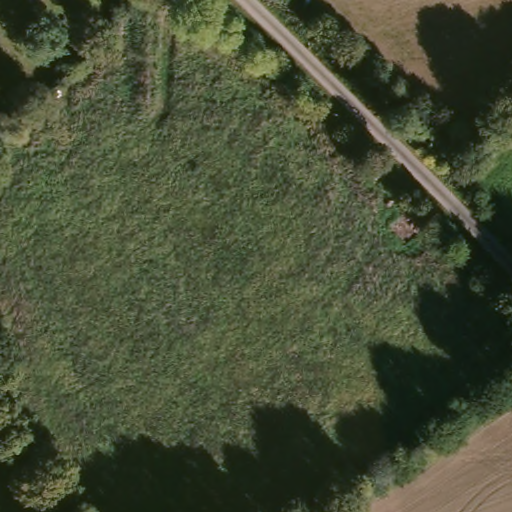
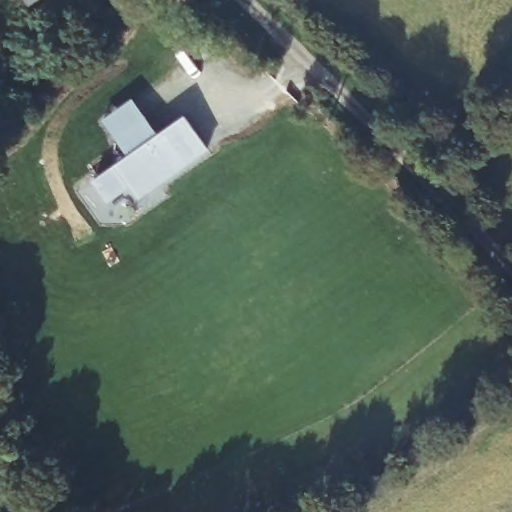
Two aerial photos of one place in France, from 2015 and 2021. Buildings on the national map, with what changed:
demolished [(25,0),(28,0),(26,1),(25,0)]
new [(126,152),(101,116),(128,97),(153,132),(180,114),(203,146),(136,195),(128,182),(105,198),(91,178),(126,152)]
unchanged [(433,174),(405,147),(424,125),(453,148),(433,174)]

